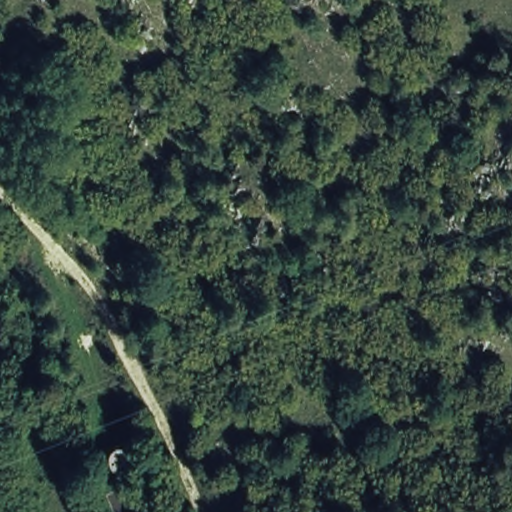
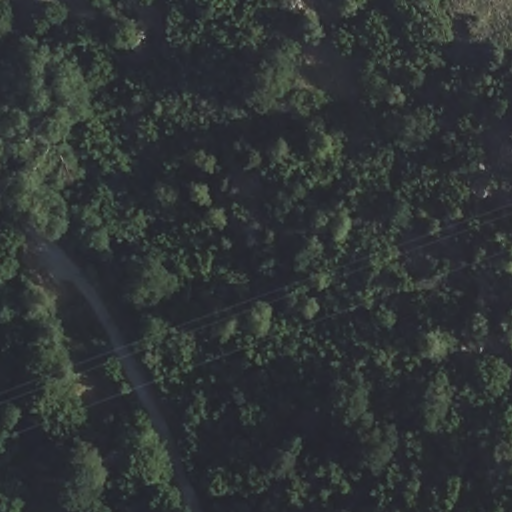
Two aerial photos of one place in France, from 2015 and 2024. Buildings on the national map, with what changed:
unchanged [(99,451),(130,452),(130,476),(99,475),(100,461),(99,451)]

